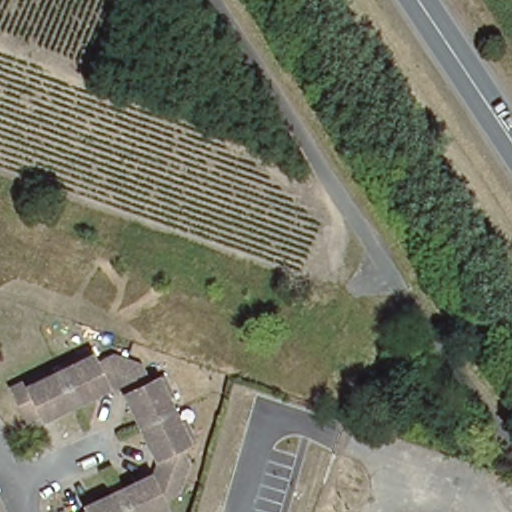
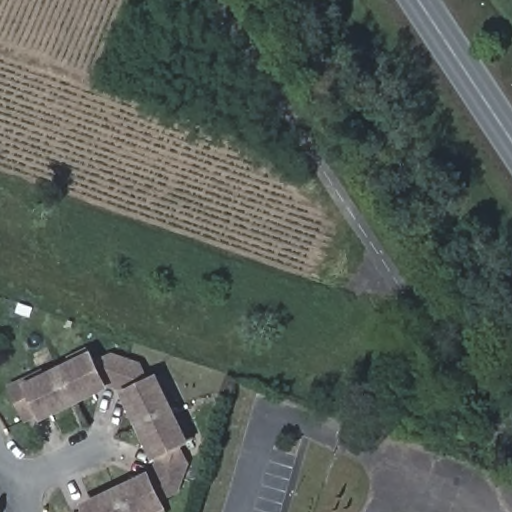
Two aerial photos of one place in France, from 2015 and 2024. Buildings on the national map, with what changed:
unchanged [(49,383),(76,371),(73,365),(95,356),(101,369),(119,361),(146,370),(155,388),(169,382),(177,399),(173,401),(186,427),(190,426),(198,443),(184,450),(191,466),(182,494),(164,504),(167,512),(96,512),(98,511),(95,505),(145,483),(148,488),(156,486),(165,459),(162,453),(158,454),(135,405),(139,404),(136,396),(113,387),(102,392),(104,397),(54,420),(52,416),(30,425),(16,393),(47,379),(49,383)]

